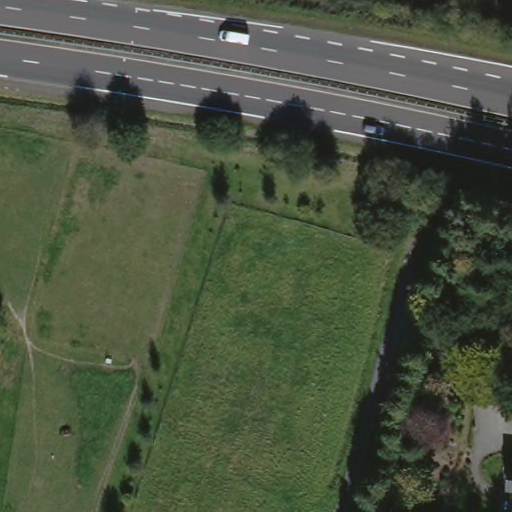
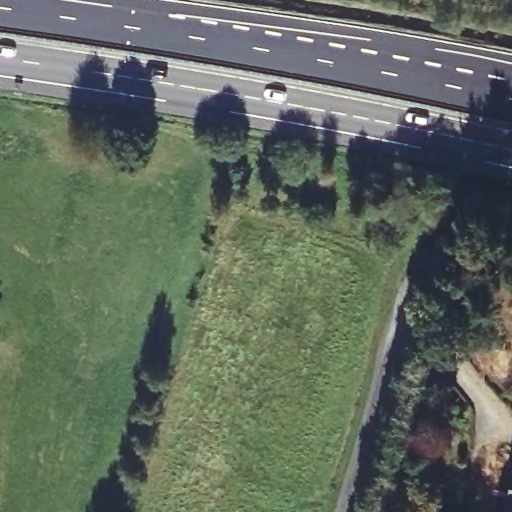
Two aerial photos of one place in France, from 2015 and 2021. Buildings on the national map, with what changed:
unchanged [(512,512),(502,512),(508,471),(512,472),(512,512)]

